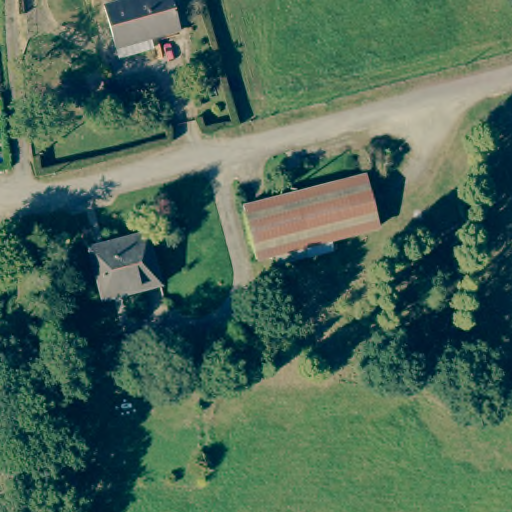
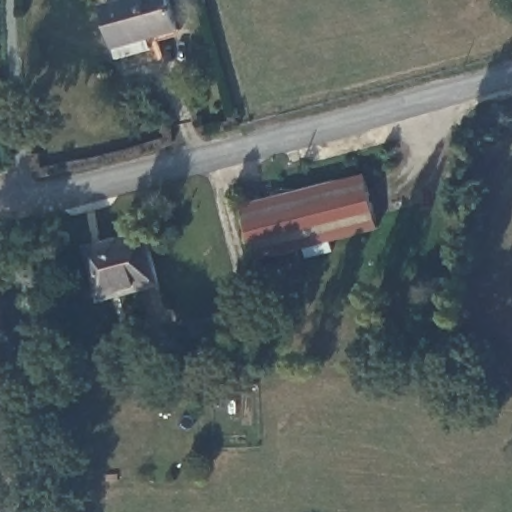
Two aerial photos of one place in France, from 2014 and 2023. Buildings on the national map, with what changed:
unchanged [(143,41),(145,47),(130,51),(128,46),(110,50),(99,10),(134,0),(165,0),(174,32),(143,41)]
unchanged [(298,251),(251,262),(237,208),(358,179),(371,232),(323,244),(326,255),(301,261),(298,251)]
unchanged [(139,234),(153,287),(131,292),(129,286),(93,295),(81,248),(139,234)]

